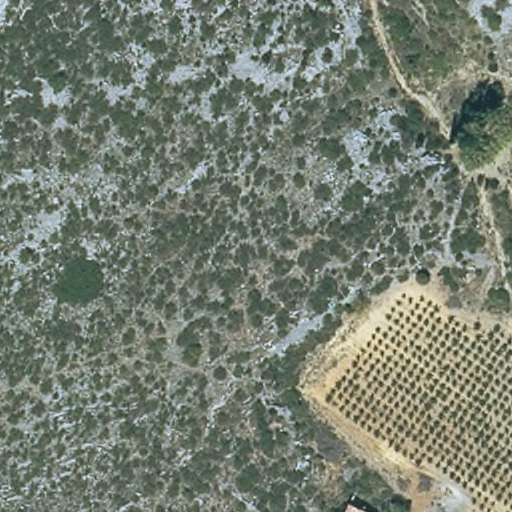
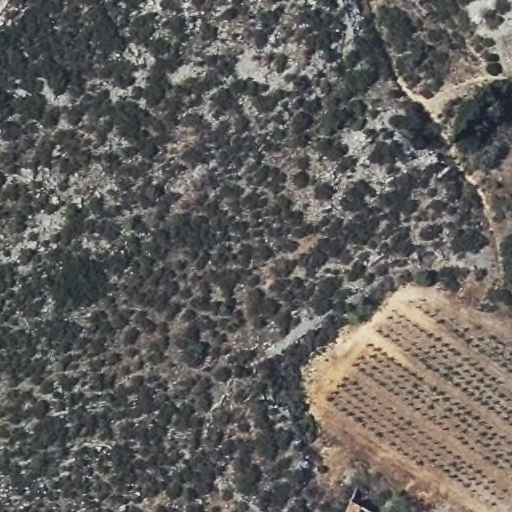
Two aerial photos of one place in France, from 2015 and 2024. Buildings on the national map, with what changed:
unchanged [(342,503),(368,512),(340,512),(342,503)]

